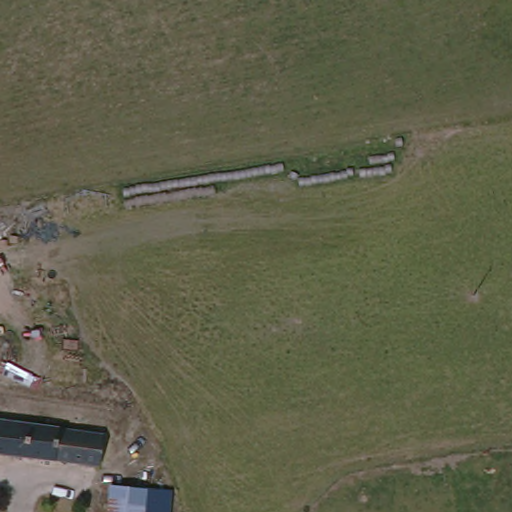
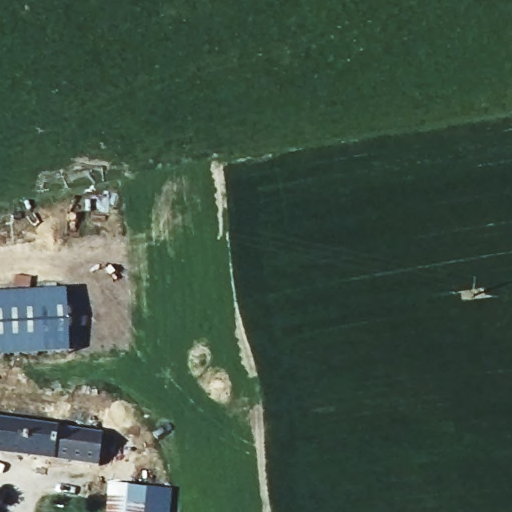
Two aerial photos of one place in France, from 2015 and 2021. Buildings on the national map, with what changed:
new [(69,353),(0,357),(0,295),(65,290),(69,353)]
unchanged [(95,464),(25,455),(0,451),(0,420),(100,435),(95,464)]
unchanged [(104,512),(108,482),(170,487),(168,512),(104,512)]

